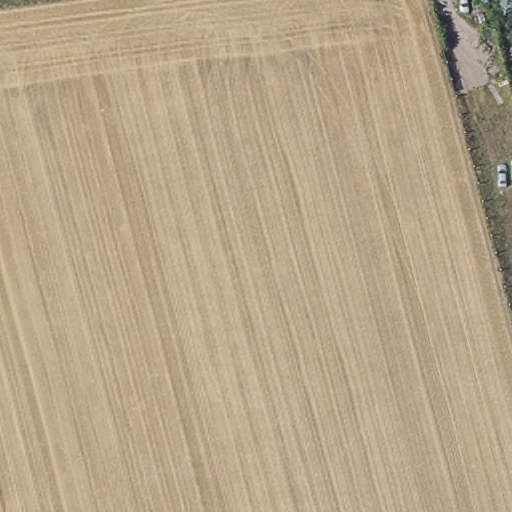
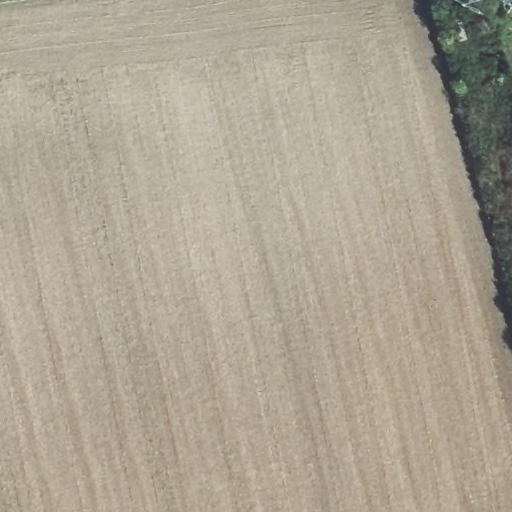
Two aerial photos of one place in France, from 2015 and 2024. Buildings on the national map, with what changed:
[]

